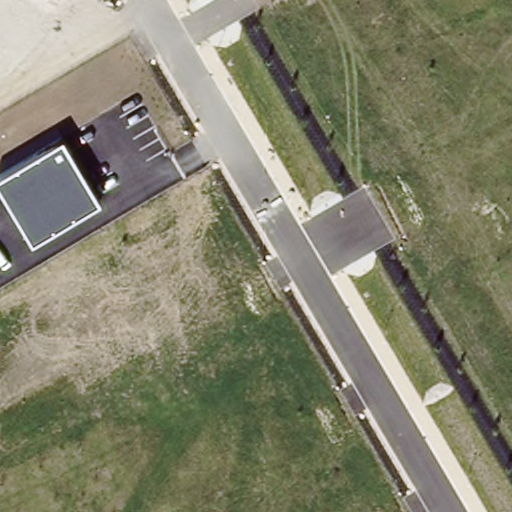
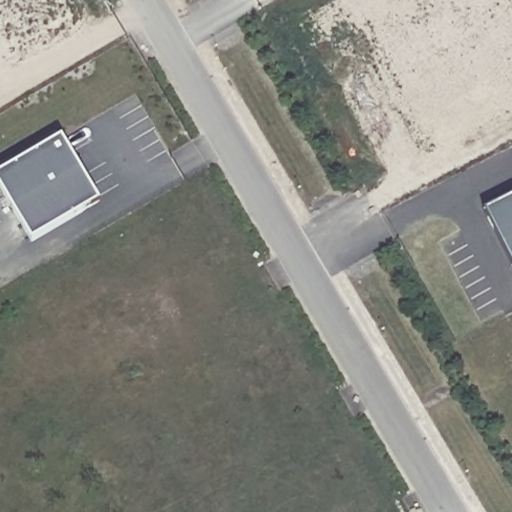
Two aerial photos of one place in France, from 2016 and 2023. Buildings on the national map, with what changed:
unchanged [(100,201),(32,241),(0,188),(0,174),(61,138),(100,201)]
new [(512,196),(512,262),(485,210),(512,196)]

